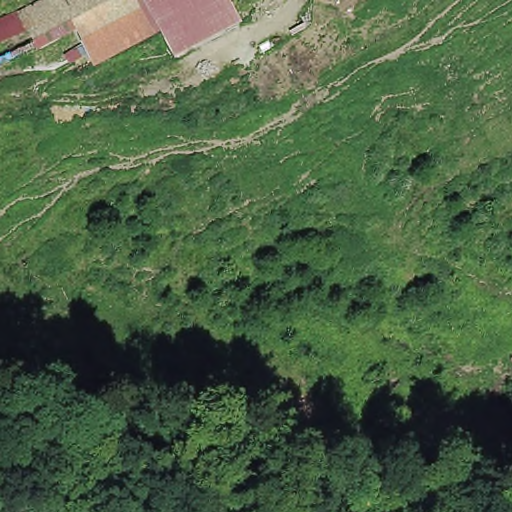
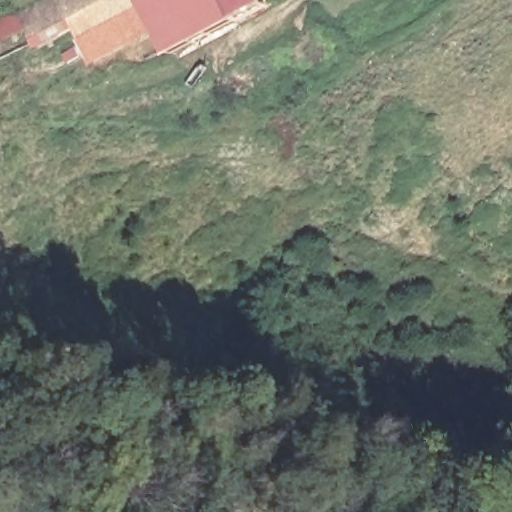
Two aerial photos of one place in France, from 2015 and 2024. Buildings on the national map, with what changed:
unchanged [(93,65),(77,30),(39,50),(29,30),(0,43),(0,18),(35,0),(277,0),(172,47),(162,31),(93,65)]

